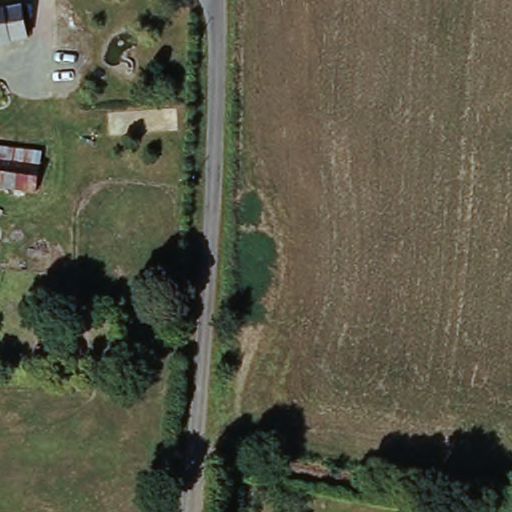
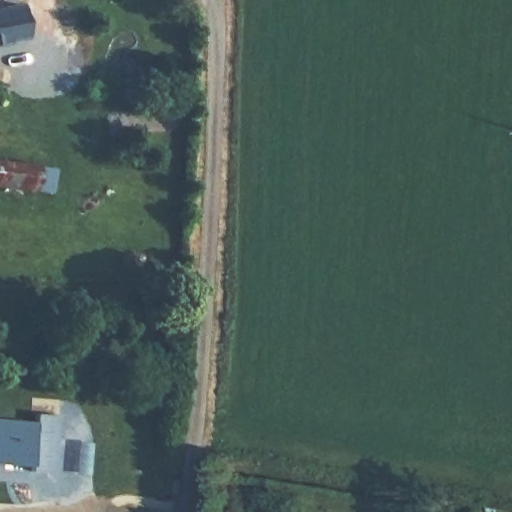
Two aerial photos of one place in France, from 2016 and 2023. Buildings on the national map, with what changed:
unchanged [(24,5),(31,37),(13,41),(14,43),(0,46),(0,10),(24,5)]
unchanged [(43,167),(39,193),(0,187),(0,162),(43,167)]
new [(32,424),(33,415),(55,417),(51,474),(28,472),(28,468),(0,466),(0,422),(32,424)]

